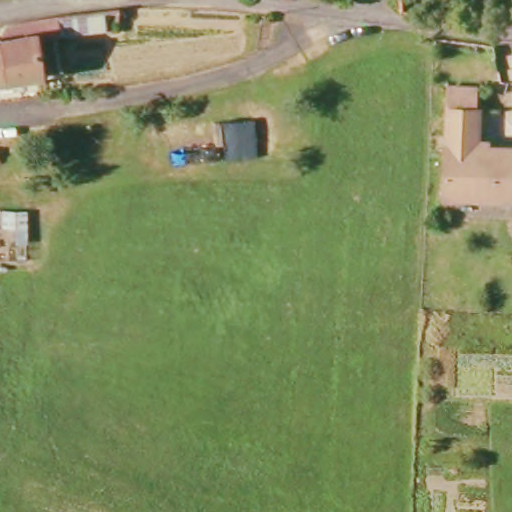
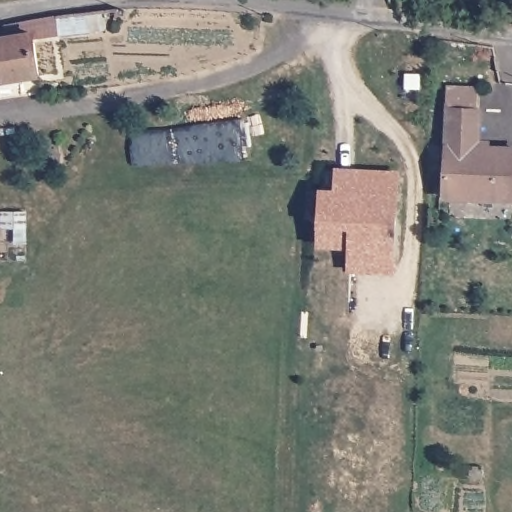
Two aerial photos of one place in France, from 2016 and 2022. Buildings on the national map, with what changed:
unchanged [(38,41),(39,50),(50,49),(52,62),(41,64),(44,81),(0,87),(0,42),(3,41),(9,28),(53,21),(55,39),(38,41)]
demolished [(495,50),(494,61),(486,61),(485,76),(427,70),(427,42),(495,50)]
unchanged [(510,156),(509,206),(440,204),(443,116),(444,98),(477,98),(476,117),(475,155),(510,156)]
new [(349,248),(319,248),(321,190),(336,190),(336,168),(400,171),(395,274),(349,272),(349,248)]

